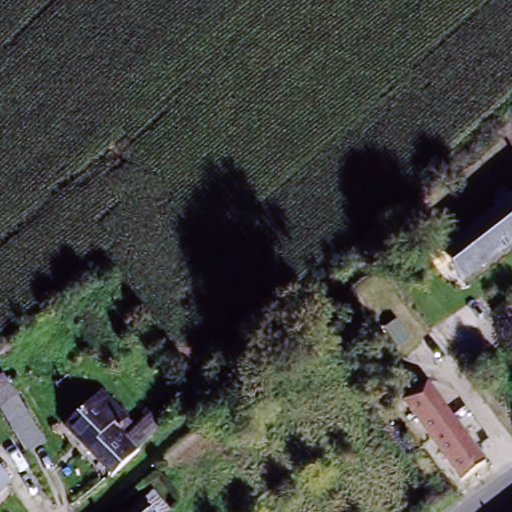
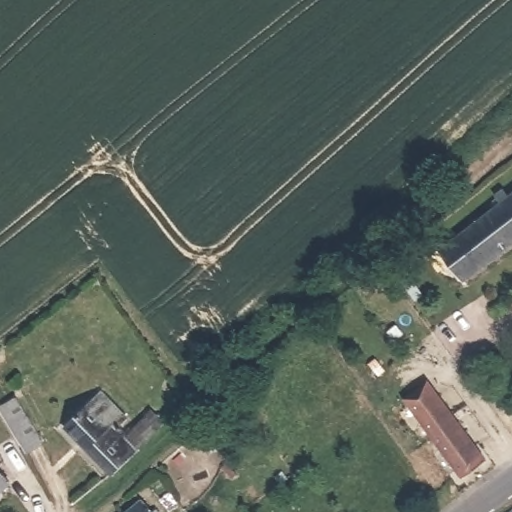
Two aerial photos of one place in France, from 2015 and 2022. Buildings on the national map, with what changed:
unchanged [(498,202),(509,193),(512,196),(512,243),(466,280),(452,265),(438,276),(430,267),(502,209),(498,202)]
unchanged [(4,376),(46,446),(23,457),(0,414),(0,379),(4,376)]
unchanged [(444,381),(484,470),(458,482),(418,395),(444,381)]
unchanged [(99,390),(123,415),(82,451),(61,427),(99,390)]
unchanged [(87,449),(115,423),(138,448),(108,474),(87,449)]
unchanged [(4,486),(0,490),(0,483),(4,486)]
unchanged [(153,495),(168,512),(133,512),(153,495)]

